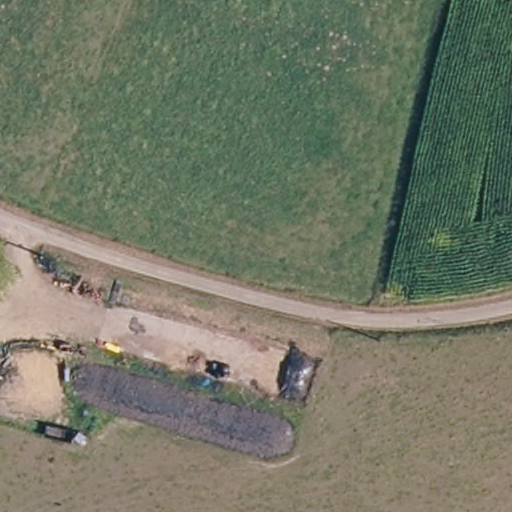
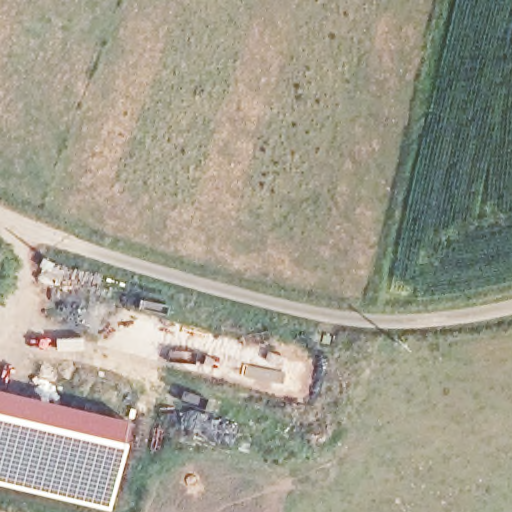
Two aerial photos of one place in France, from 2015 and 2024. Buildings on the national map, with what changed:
new [(0,389),(132,421),(109,510),(0,484),(0,389)]

